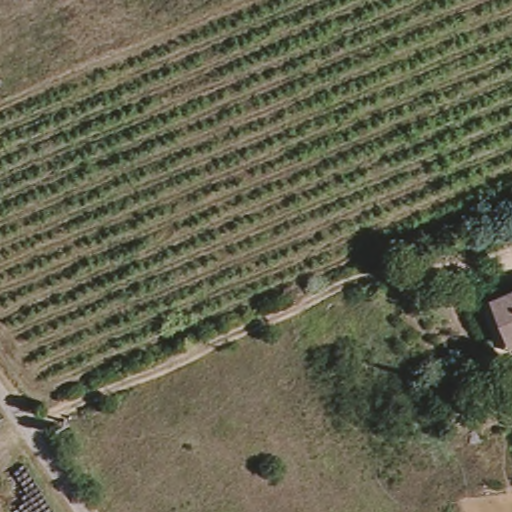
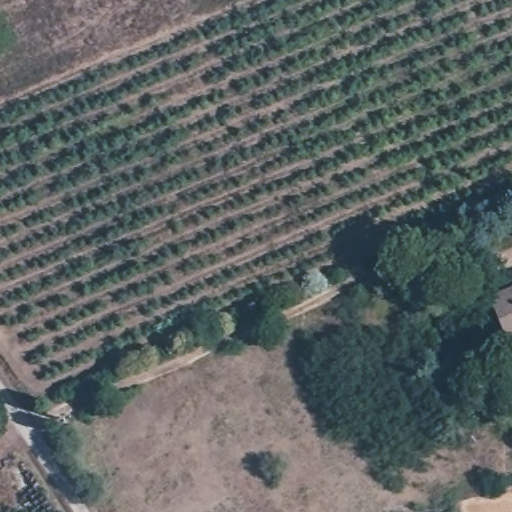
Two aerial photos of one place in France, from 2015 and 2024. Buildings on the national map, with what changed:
unchanged [(489,302),(512,293),(512,351),(509,352),(489,302)]

